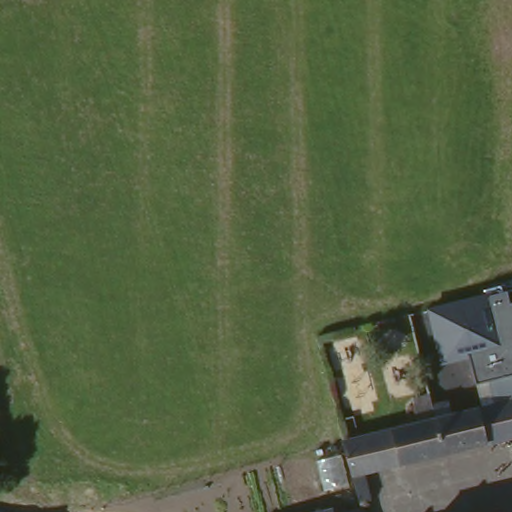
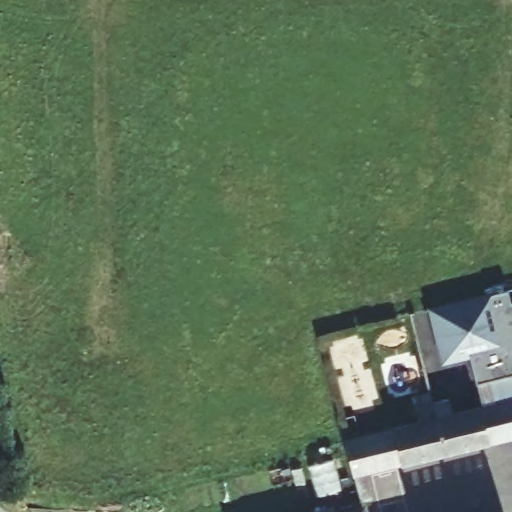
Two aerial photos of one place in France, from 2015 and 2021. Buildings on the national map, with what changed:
unchanged [(479,382),(476,383),(469,359),(441,364),(427,308),(484,294),(483,289),(503,285),(504,290),(508,289),(511,303),(512,303),(512,373),(479,382)]
unchanged [(486,405),(479,382),(512,373),(512,398),(486,405)]
unchanged [(373,498),(356,440),(431,420),(427,405),(443,401),(446,416),(466,410),(486,405),(512,398),(512,433),(456,448),(377,471),(384,495),(373,498)]
unchanged [(343,512),(309,512),(340,504),(343,512)]
unchanged [(368,505),(370,512),(343,512),(363,506),(368,505)]

